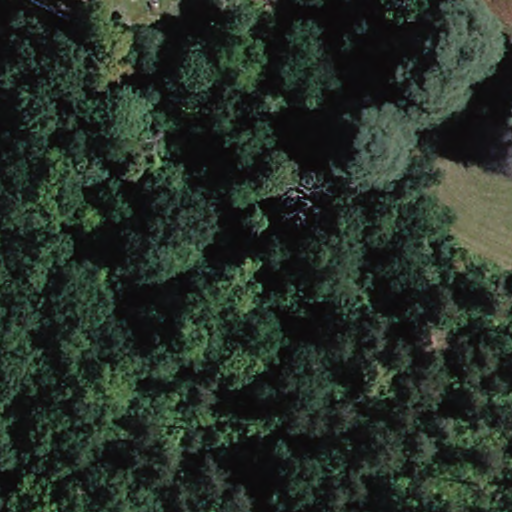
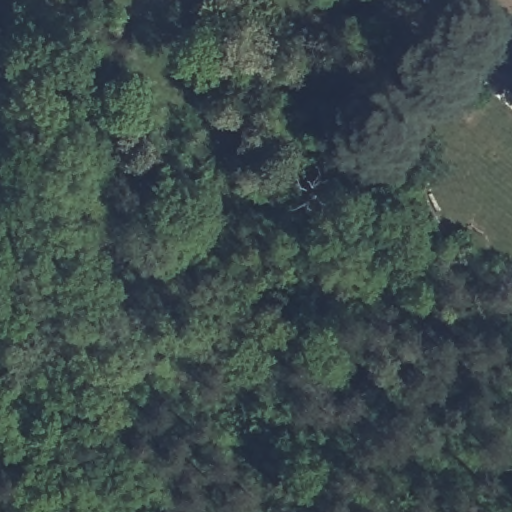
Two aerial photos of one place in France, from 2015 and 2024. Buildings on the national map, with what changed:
unchanged [(211,66),(207,78),(191,70),(196,59),(211,66)]

